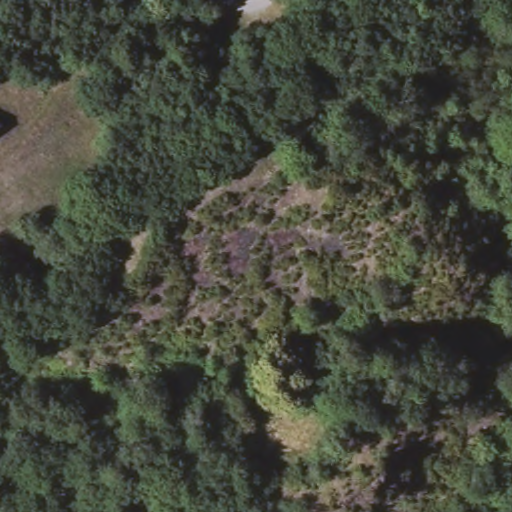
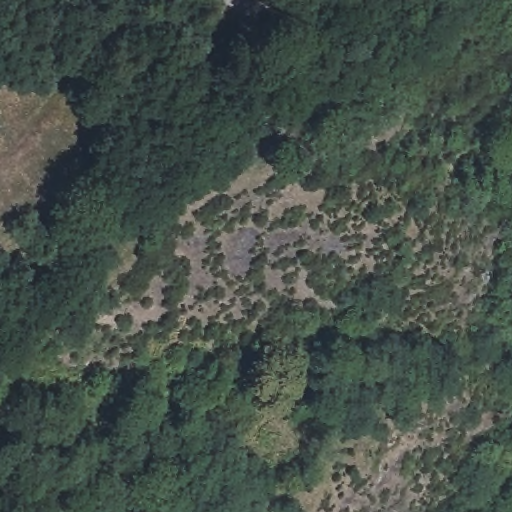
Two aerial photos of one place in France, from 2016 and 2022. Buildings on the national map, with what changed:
unchanged [(9,130),(0,142),(0,123),(9,130)]

